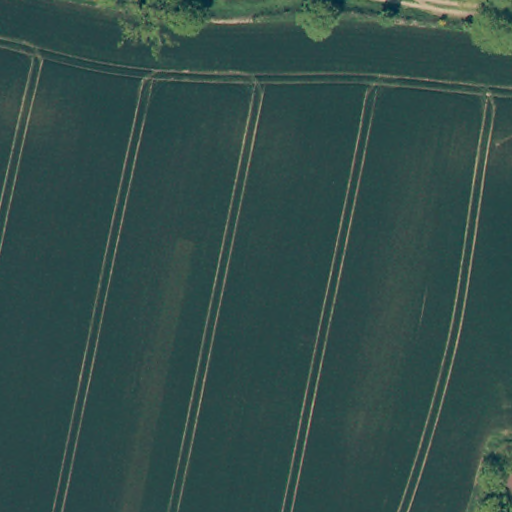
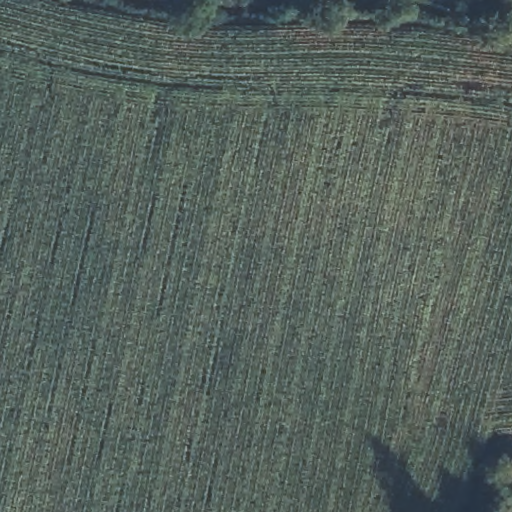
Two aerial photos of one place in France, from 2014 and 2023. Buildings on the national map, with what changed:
unchanged [(512,465),(512,512),(500,512),(502,464),(512,465)]

